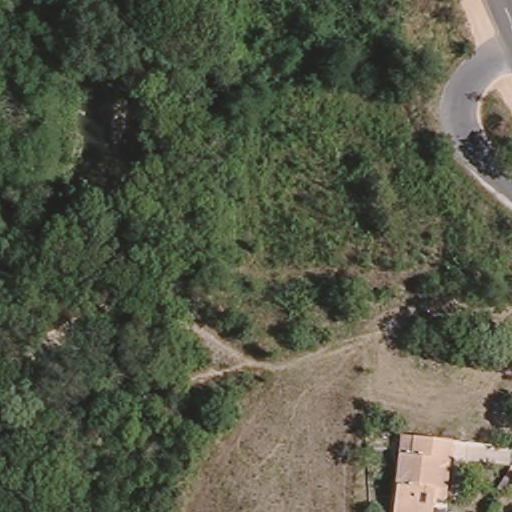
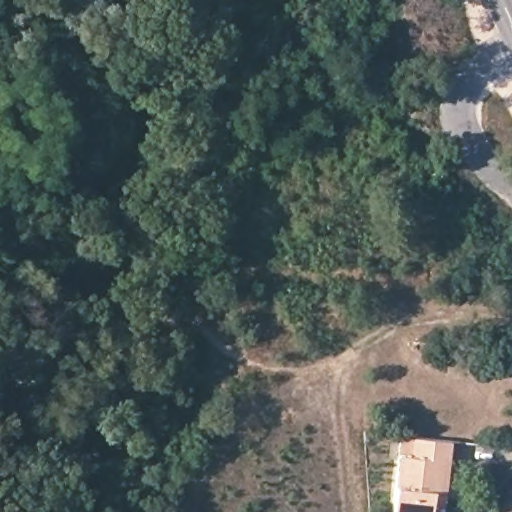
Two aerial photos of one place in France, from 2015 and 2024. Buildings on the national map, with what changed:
unchanged [(397,508),(406,427),(418,428),(454,432),(452,448),(448,490),(437,489),(435,512),(397,512),(397,508)]

